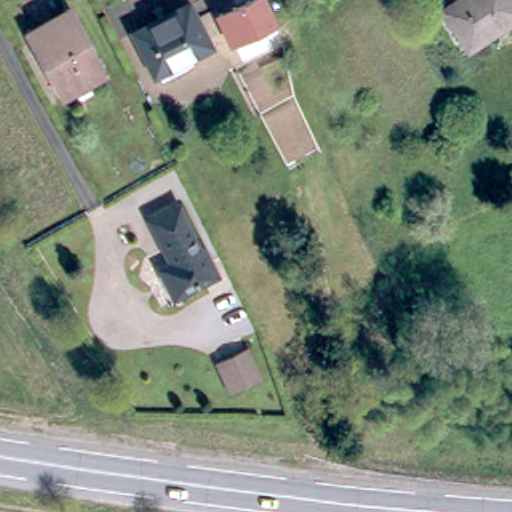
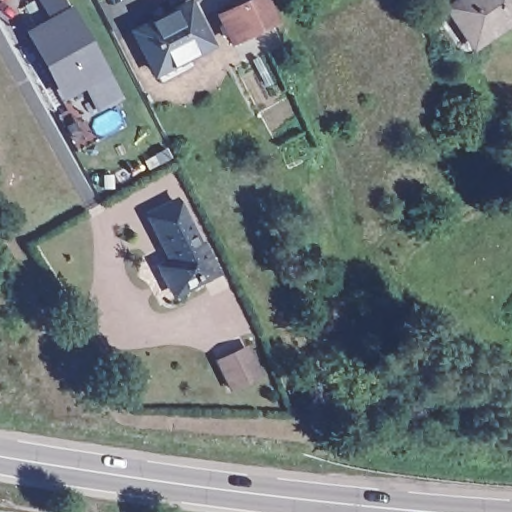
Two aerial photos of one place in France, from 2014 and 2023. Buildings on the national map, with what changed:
unchanged [(257,39),(254,31),(232,41),(220,16),(252,0),(262,0),(272,22),(265,26),(263,26),(267,35),(257,39)]
unchanged [(473,46),(448,8),(460,0),(512,0),(512,21),(473,46)]
unchanged [(182,7),(187,4),(208,45),(202,48),(171,64),(154,73),(133,32),(150,23),(182,7)]
unchanged [(102,73),(67,92),(34,32),(69,13),(102,73)]
unchanged [(162,269),(173,262),(174,262),(153,220),(180,207),(213,272),(187,286),(174,292),(162,269)]
unchanged [(230,354),(232,356),(247,349),(259,376),(242,384),(230,390),(216,360),(226,356),(230,354)]

